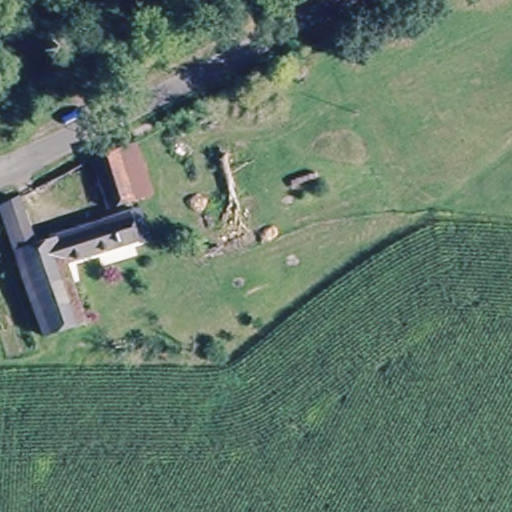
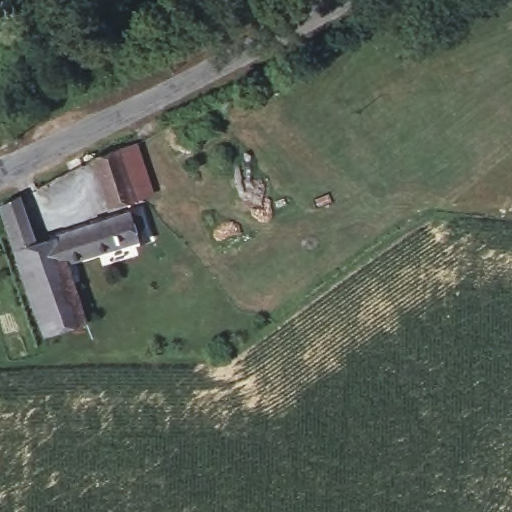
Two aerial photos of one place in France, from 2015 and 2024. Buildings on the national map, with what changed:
unchanged [(131,136),(151,193),(130,200),(113,145),(131,136)]
unchanged [(113,145),(130,200),(107,209),(90,157),(113,145)]
unchanged [(16,196),(32,245),(11,253),(0,222),(0,205),(16,196)]
unchanged [(32,245),(136,209),(140,218),(146,216),(152,234),(61,265),(81,326),(40,339),(11,253),(32,245)]

